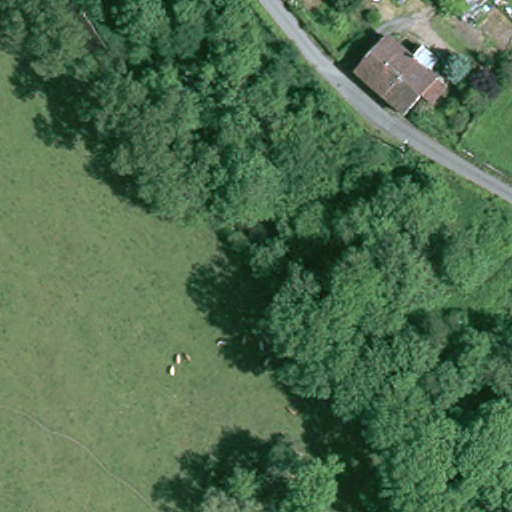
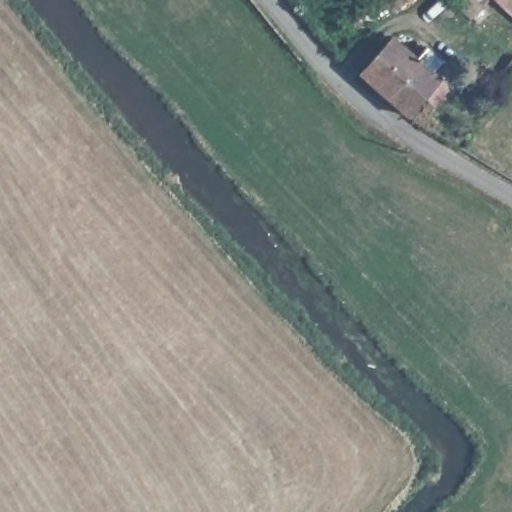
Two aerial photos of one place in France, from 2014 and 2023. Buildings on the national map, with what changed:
unchanged [(500,0),(485,16),(467,0),(500,0)]
unchanged [(365,75),(395,40),(419,61),(430,49),(444,62),(433,74),(441,81),(410,116),(365,75)]

